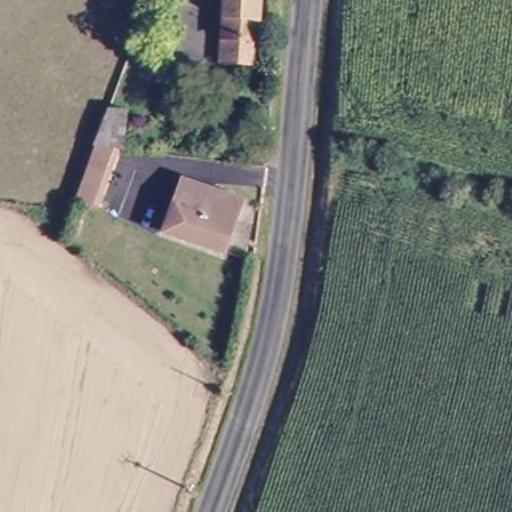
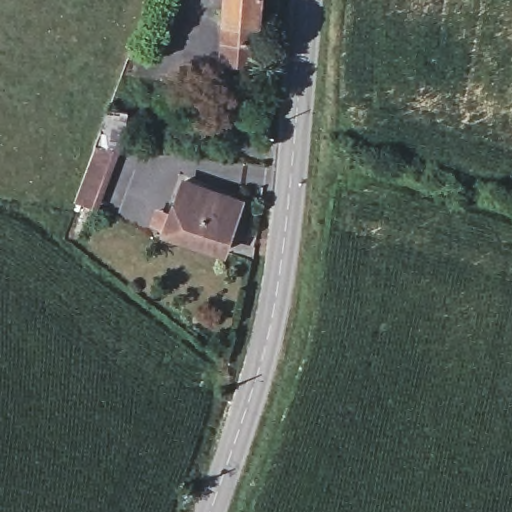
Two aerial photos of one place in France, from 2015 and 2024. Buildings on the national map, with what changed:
unchanged [(218,0),(257,0),(255,36),(249,37),(248,62),(215,62),(218,0)]
unchanged [(109,121),(142,122),(140,162),(108,162),(109,121)]
unchanged [(108,162),(127,173),(100,220),(83,209),(108,162)]
unchanged [(174,181),(179,184),(211,193),(216,181),(234,188),(230,202),(213,249),(159,230),(174,181)]

